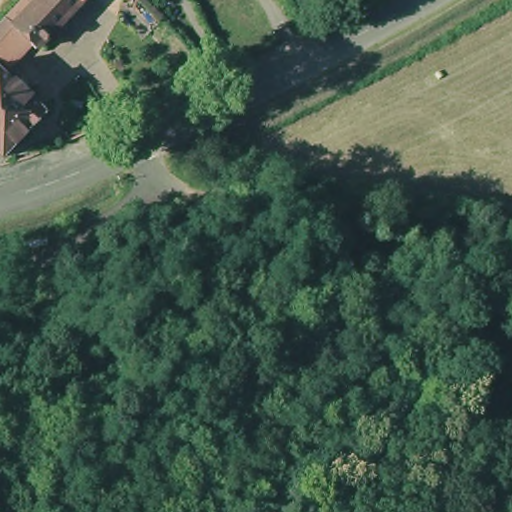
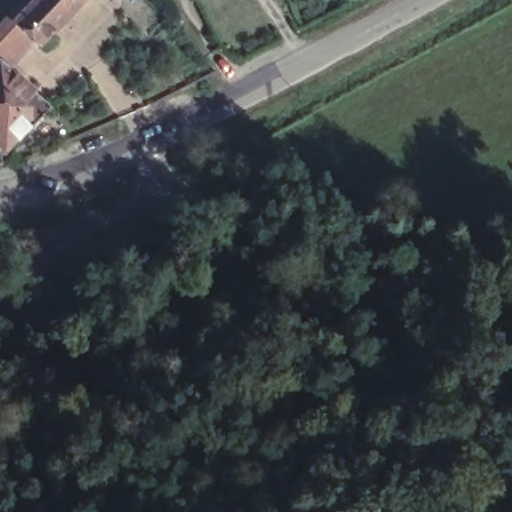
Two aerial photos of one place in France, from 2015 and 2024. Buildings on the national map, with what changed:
unchanged [(6,23),(28,0),(88,0),(38,53),(24,39),(3,61),(0,58),(0,30),(6,23)]
unchanged [(28,135),(28,134),(1,162),(0,161),(0,71),(45,117),(28,135)]

